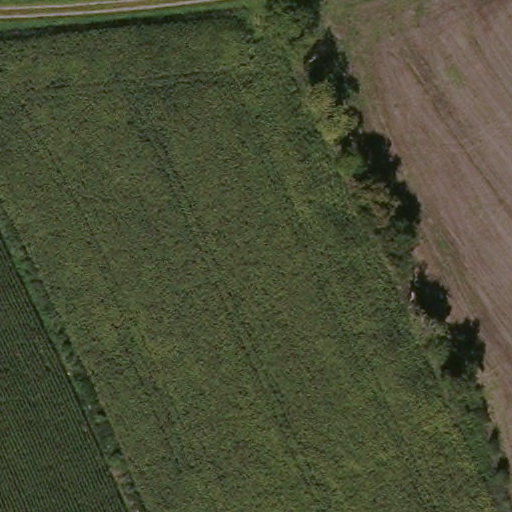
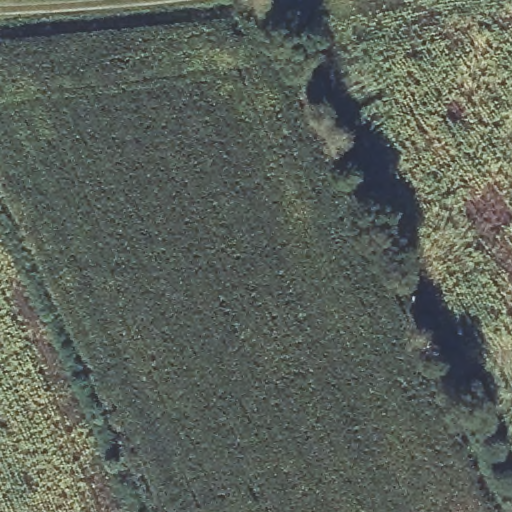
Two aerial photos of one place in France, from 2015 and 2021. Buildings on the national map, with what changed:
[]

